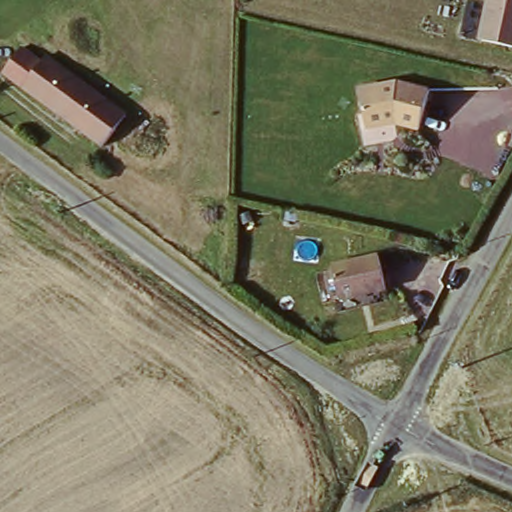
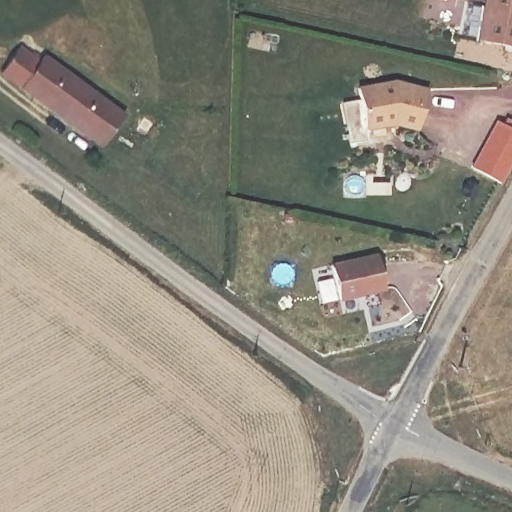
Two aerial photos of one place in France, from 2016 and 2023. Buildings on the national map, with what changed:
unchanged [(486,0),(512,0),(512,47),(478,41),(486,0)]
unchanged [(3,70),(10,61),(23,45),(42,61),(46,55),(125,117),(101,147),(23,86),(3,70)]
unchanged [(392,83),(431,89),(417,136),(395,131),(369,137),(361,91),(392,83)]
new [(512,120),(512,167),(503,183),(472,167),(498,120),(505,124),(509,118),(512,120)]
unchanged [(378,263),(383,297),(341,309),(332,274),(378,263)]

